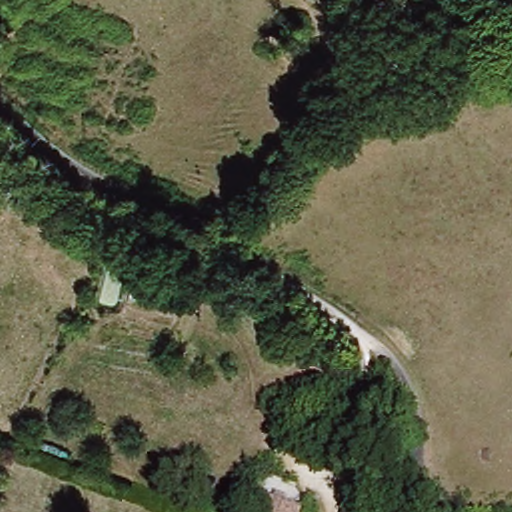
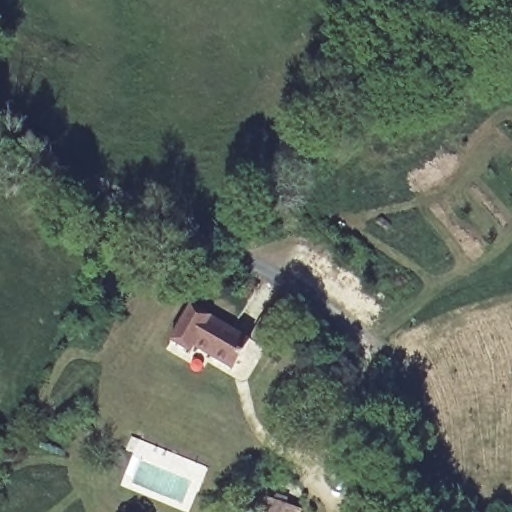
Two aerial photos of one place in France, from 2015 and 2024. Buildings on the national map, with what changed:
new [(234,369),(194,347),(189,356),(166,342),(190,302),(253,338),(234,369)]
unchanged [(274,500),(302,512),(301,512),(269,512),(274,500)]

